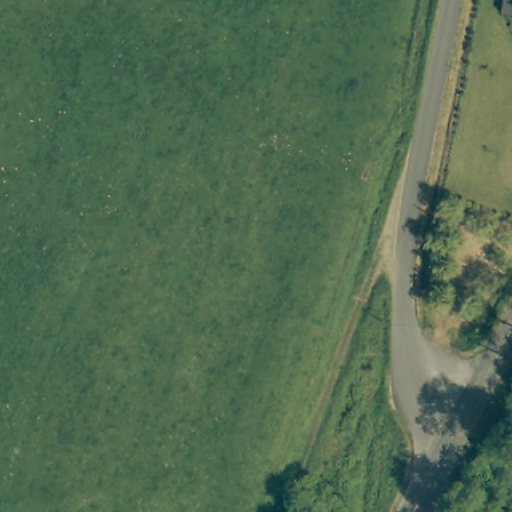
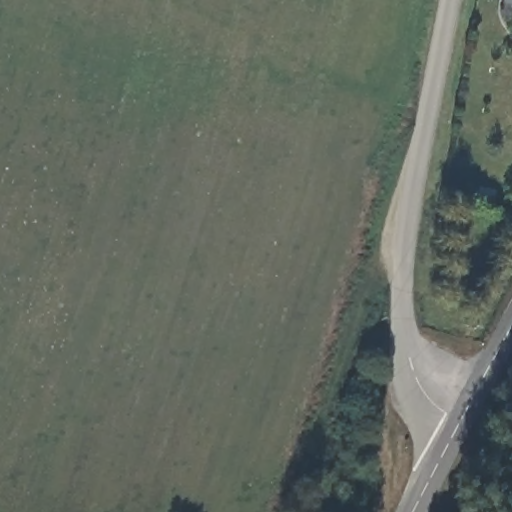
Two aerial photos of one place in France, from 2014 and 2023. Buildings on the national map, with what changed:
unchanged [(510,11),(512,0),(512,11),(510,11)]

